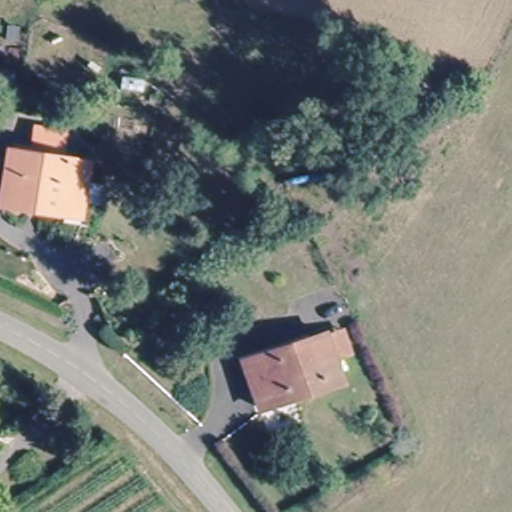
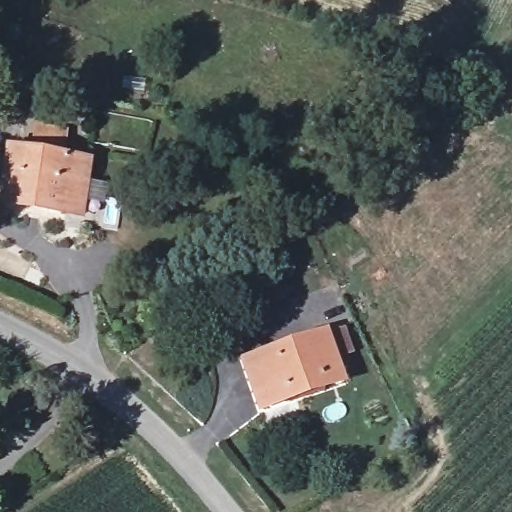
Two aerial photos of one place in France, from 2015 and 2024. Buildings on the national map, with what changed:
unchanged [(58,211),(2,203),(12,146),(79,156),(75,199),(74,212),(58,211)]
unchanged [(324,324),(344,371),(268,408),(246,357),(324,324)]

